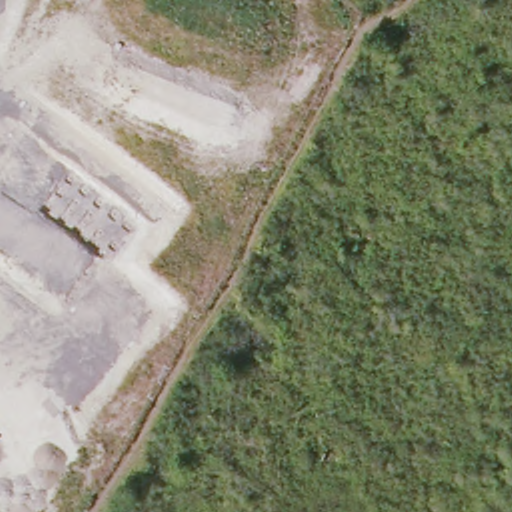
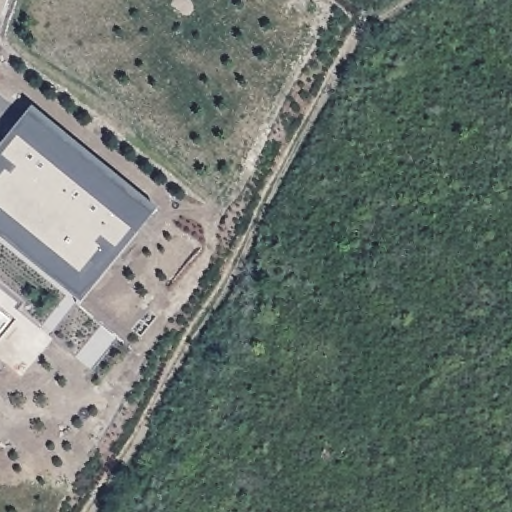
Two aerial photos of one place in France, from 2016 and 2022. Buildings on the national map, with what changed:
new [(79,307),(0,243),(0,147),(30,109),(156,209),(104,274),(158,316),(141,337),(133,330),(124,342),(79,307)]
demolished [(49,235),(40,270),(17,264),(25,230),(49,235)]

